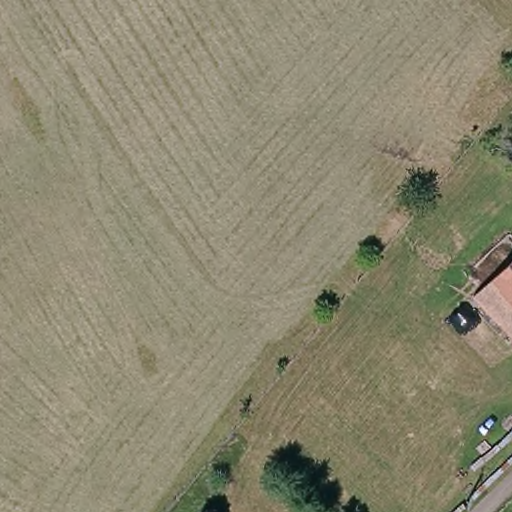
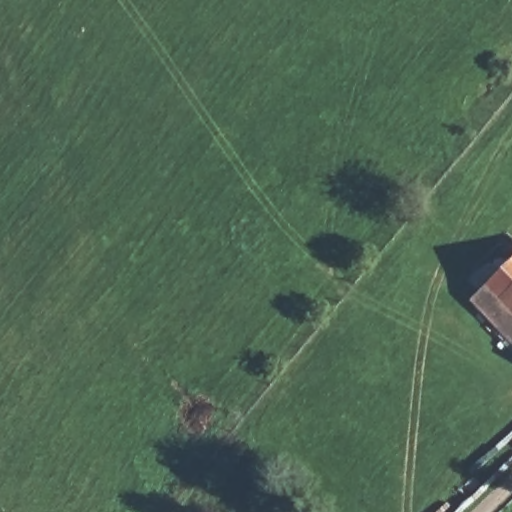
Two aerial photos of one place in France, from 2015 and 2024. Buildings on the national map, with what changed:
unchanged [(512,341),(475,302),(512,266),(512,341)]

